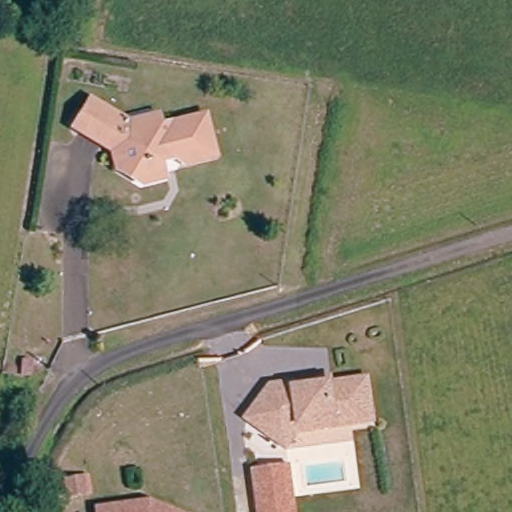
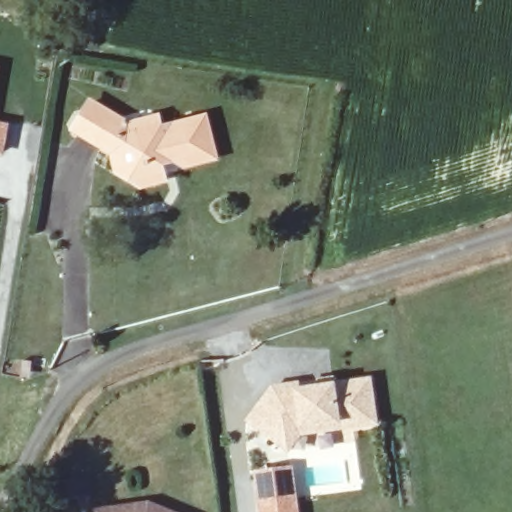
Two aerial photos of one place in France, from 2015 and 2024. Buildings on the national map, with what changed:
unchanged [(124,117),(158,110),(163,121),(208,110),(218,160),(184,169),(177,160),(165,162),(168,182),(143,189),(114,176),(110,154),(69,130),(89,93),(124,117)]
new [(9,124),(4,156),(0,155),(0,122),(9,124)]
unchanged [(303,381),(305,387),(371,377),(377,423),(306,431),(289,455),(244,422),(273,386),(303,381)]
unchanged [(251,469),(292,463),(298,512),(257,512),(251,469)]
unchanged [(63,487),(78,485),(80,500),(65,502),(63,487)]
unchanged [(107,510),(157,503),(177,512),(107,512),(107,510)]

